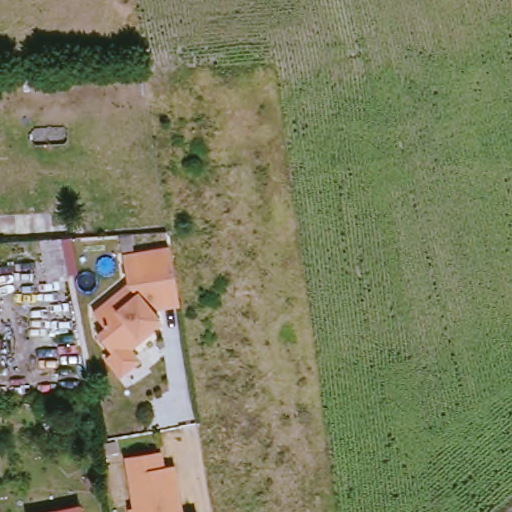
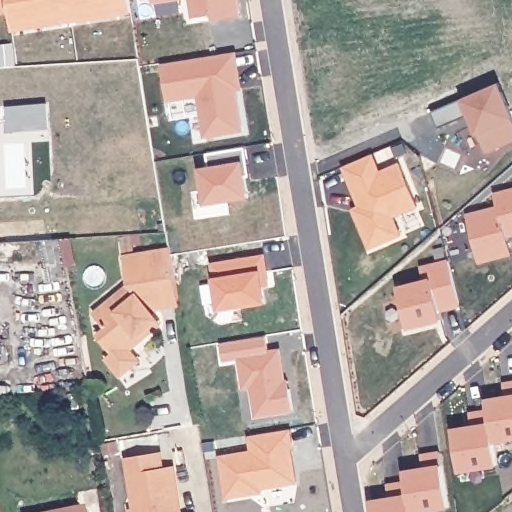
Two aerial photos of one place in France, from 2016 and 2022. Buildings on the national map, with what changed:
new [(0,12),(0,0),(4,0),(5,11),(0,12)]
new [(14,30),(9,0),(71,0),(74,20),(14,30)]
new [(74,20),(71,0),(131,0),(133,11),(74,20)]
new [(156,0),(163,0),(156,1),(156,0)]
new [(217,19),(217,14),(197,16),(194,0),(241,0),(243,15),(217,19)]
new [(240,51),(245,86),(240,88),(247,129),(210,136),(203,95),(171,100),(165,63),(234,52),(240,51)]
new [(512,119),(512,142),(485,155),(476,136),(472,138),(463,116),(437,128),(432,112),(497,84),(512,119)]
new [(47,103),(50,119),(50,127),(10,131),(10,124),(8,107),(22,105),(37,104),(47,103)]
new [(212,154),(250,147),(252,164),(255,175),(250,176),(253,197),(212,203),(206,170),(214,168),(212,154)]
new [(375,154),(384,173),(405,164),(420,204),(398,215),(407,234),(376,248),(358,210),(364,207),(347,166),(375,154)]
new [(499,209),(495,195),(512,191),(512,233),(505,235),(509,253),(476,260),(464,214),(499,209)]
unchanged [(133,349),(142,360),(125,374),(110,358),(116,353),(102,334),(110,328),(97,313),(132,284),(127,255),(175,248),(183,304),(162,307),(160,305),(155,309),(162,318),(165,323),(133,349)]
new [(266,288),(261,289),(259,275),(263,304),(218,310),(210,266),(262,258),(264,274),(266,288)]
new [(425,280),(422,267),(449,259),(460,304),(440,309),(443,318),(410,327),(400,286),(425,280)]
new [(271,338),(273,354),(284,352),(290,391),(294,391),(297,412),(267,416),(259,410),(256,389),(248,389),(243,359),(227,362),(225,345),(271,338)]
new [(512,386),(512,399),(510,386),(512,386)]
new [(475,416),(495,413),(493,403),(512,399),(512,442),(499,444),(503,468),(465,474),(458,433),(478,429),(475,416)]
new [(295,483),(260,489),(260,494),(225,499),(219,459),(251,454),(248,437),(288,431),(295,483)]
new [(394,502),(392,489),(411,486),(410,474),(429,472),(427,459),(445,455),(453,511),(445,512),(376,512),(375,505),(394,502)]
unchanged [(130,462),(164,457),(167,473),(177,471),(183,512),(138,512),(130,462)]

